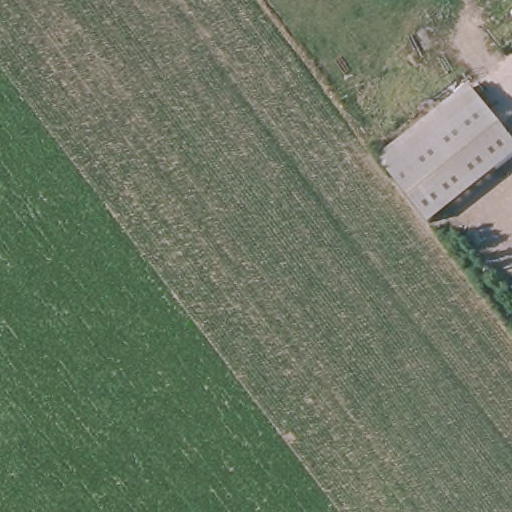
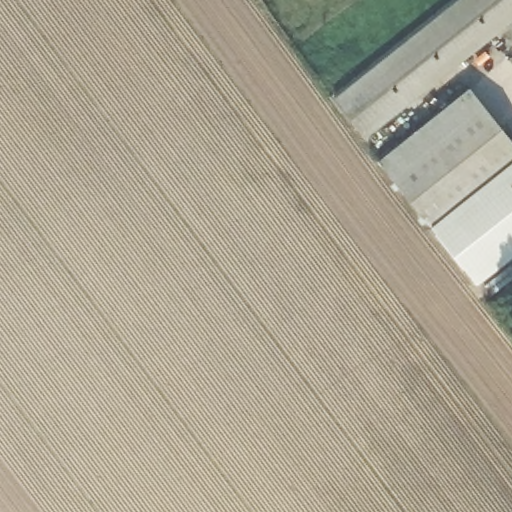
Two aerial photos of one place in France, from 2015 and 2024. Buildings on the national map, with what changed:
new [(512,0),(512,23),(361,135),(333,97),(464,0),(512,0)]
new [(393,177),(380,159),(471,89),(483,104),(393,177)]
unchanged [(512,140),(512,157),(431,224),(393,177),(483,104),(512,140)]
new [(476,285),(431,224),(512,157),(512,256),(476,285)]

